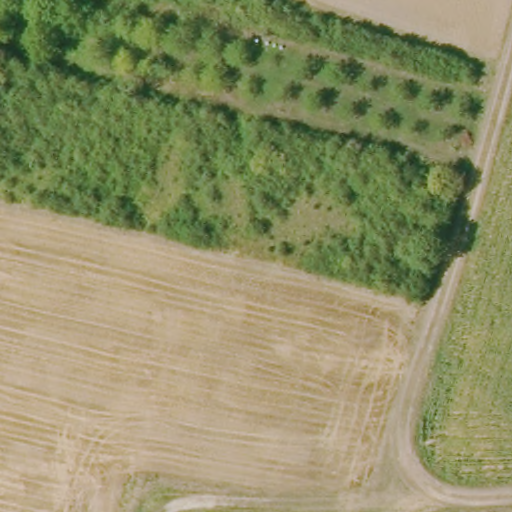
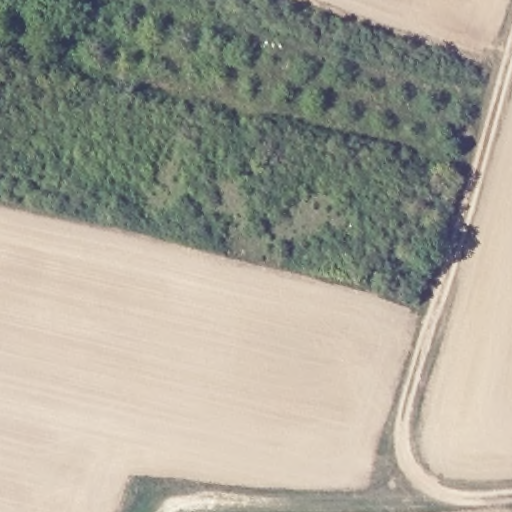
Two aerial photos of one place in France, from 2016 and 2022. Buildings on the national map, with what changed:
[]

